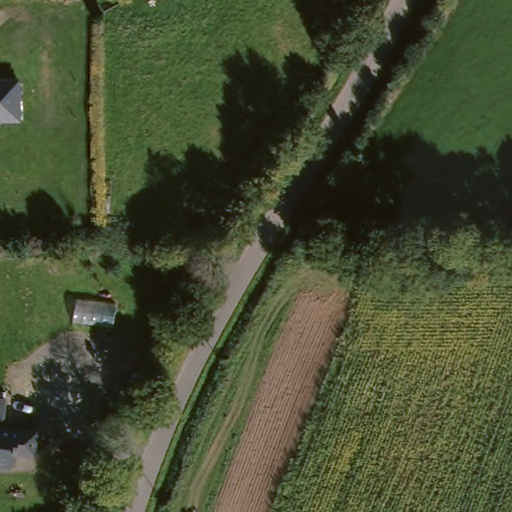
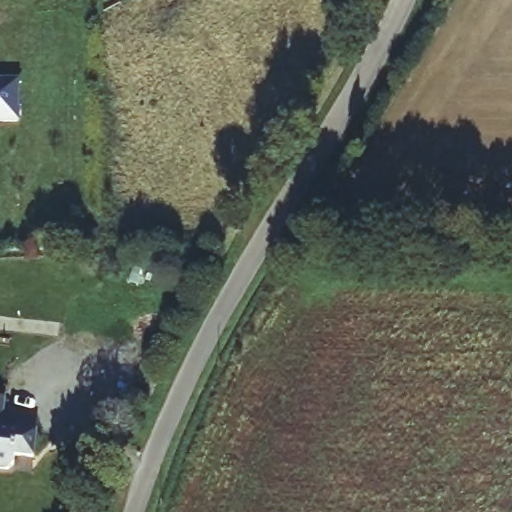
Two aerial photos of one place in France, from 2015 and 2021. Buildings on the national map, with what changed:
unchanged [(19,120),(0,122),(0,81),(15,80),(19,120)]
unchanged [(3,417),(0,420),(0,398),(4,398),(3,417)]
unchanged [(38,429),(37,455),(18,454),(18,464),(13,468),(0,468),(0,428),(38,429)]

